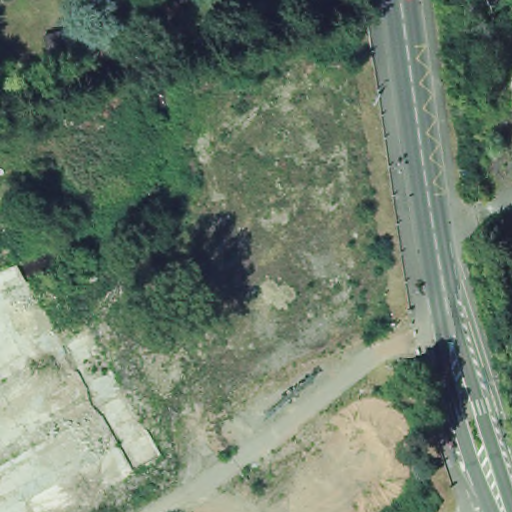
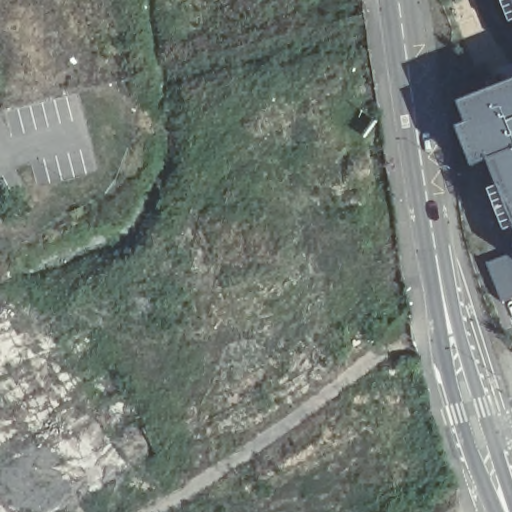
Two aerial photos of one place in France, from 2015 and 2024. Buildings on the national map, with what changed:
new [(505,0),(512,0),(512,19),(505,0)]
demolished [(490,118),(485,71),(512,69),(512,115),(490,118)]
new [(479,159),(465,165),(450,129),(462,126),(453,104),(512,81),(512,244),(479,159)]
new [(500,303),(485,264),(512,255),(512,298),(500,303)]

